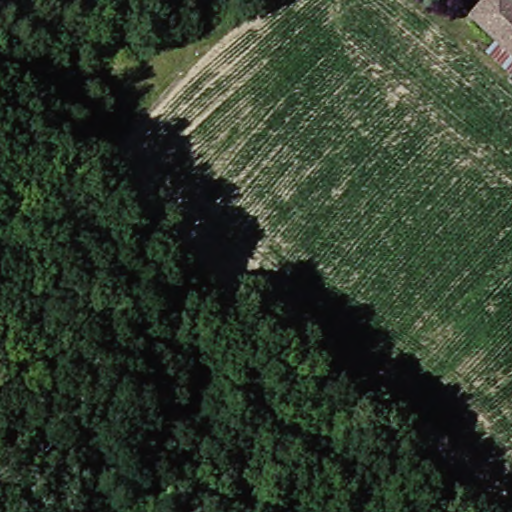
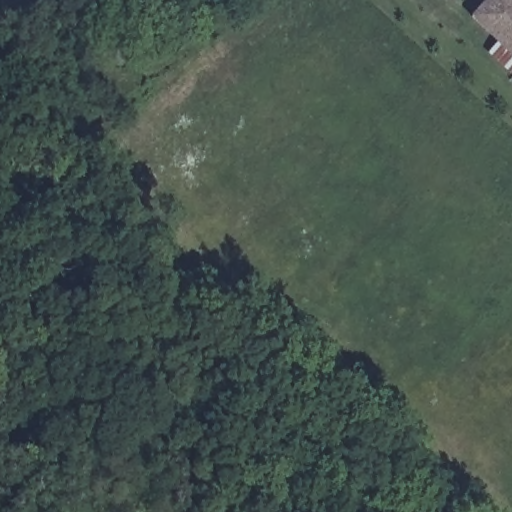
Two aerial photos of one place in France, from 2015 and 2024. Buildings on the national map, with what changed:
unchanged [(481,19),(497,0),(512,0),(512,45),(481,19)]

